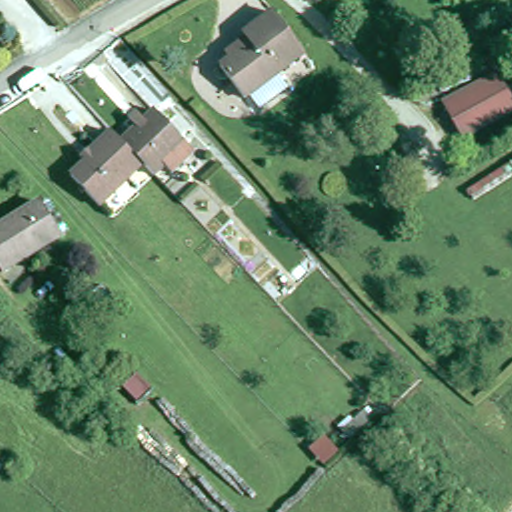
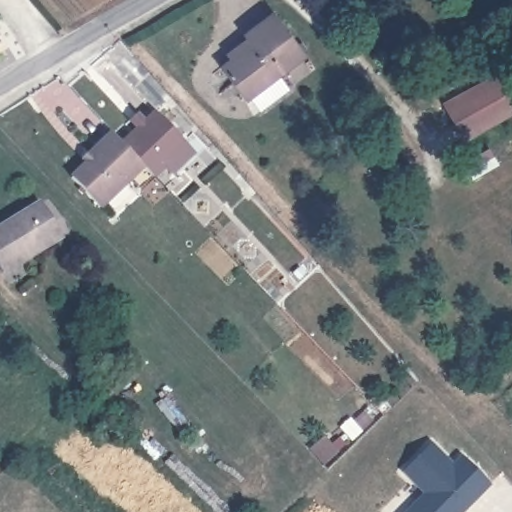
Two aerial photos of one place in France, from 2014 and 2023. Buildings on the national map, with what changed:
unchanged [(235,58),(231,54),(248,39),(245,36),(275,13),(305,55),(278,74),(290,90),(261,111),(250,96),(245,99),(222,68),(235,58)]
unchanged [(512,102),(512,109),(463,138),(445,105),(497,76),(512,102)]
unchanged [(173,178),(166,170),(155,182),(144,170),(123,149),(157,117),(188,150),(195,157),(173,178)]
unchanged [(123,149),(144,170),(100,212),(72,183),(88,168),(85,165),(90,161),(113,138),(123,149)]
unchanged [(3,273),(0,268),(0,228),(40,203),(61,236),(3,273)]
unchanged [(112,298),(99,308),(90,296),(102,286),(112,298)]
new [(426,494),(404,473),(432,444),(453,466),(462,457),(490,485),(468,507),(466,505),(460,512),(408,512),(410,511),(426,494)]

